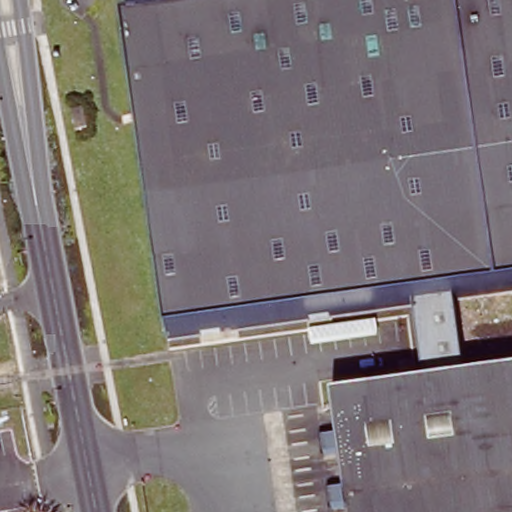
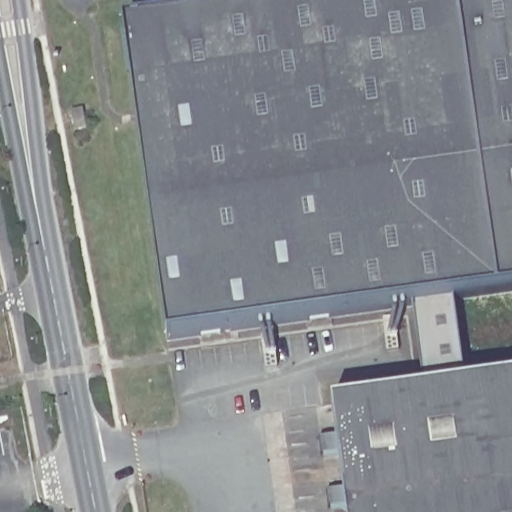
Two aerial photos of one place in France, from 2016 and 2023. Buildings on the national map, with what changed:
unchanged [(472,296),(456,298),(416,304),(174,339),(126,28),(323,0),(512,0),(512,290),(472,296)]
unchanged [(78,137),(75,115),(90,112),(92,135),(78,137)]
unchanged [(423,371),(416,304),(456,298),(464,365),(423,371)]
unchanged [(328,403),(425,390),(423,371),(464,365),(466,384),(512,377),(512,512),(344,512),(328,403)]

